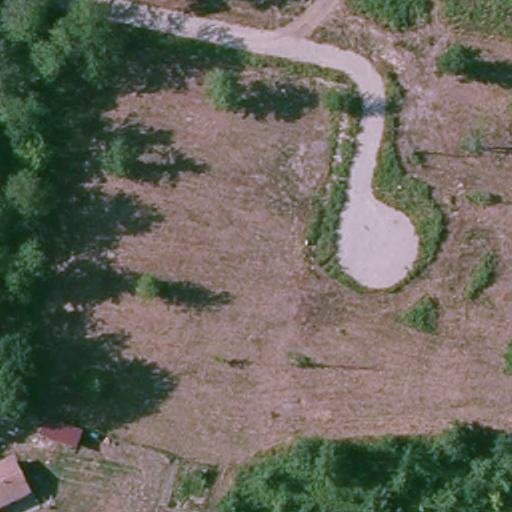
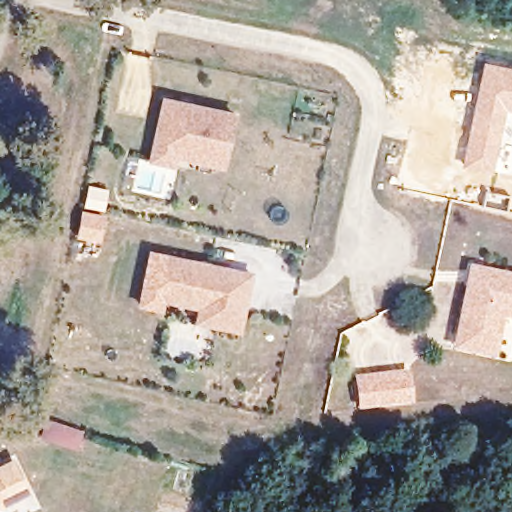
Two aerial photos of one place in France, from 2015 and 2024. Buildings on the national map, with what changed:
new [(482,61),(512,67),(512,113),(508,112),(496,175),(461,169),(472,109),(482,61)]
new [(161,96),(237,112),(225,169),(176,160),(175,170),(147,165),(161,96)]
new [(164,298),(174,258),(252,275),(239,330),(216,325),(199,321),(202,307),(164,298)]
new [(470,269),(493,274),(512,278),(512,317),(498,314),(492,340),(489,354),(452,346),(455,331),(467,276),(470,269)]
new [(408,373),(411,401),(394,403),(362,406),(358,377),(392,375),(408,373)]
unchanged [(0,503),(0,462),(12,456),(29,489),(0,503)]

